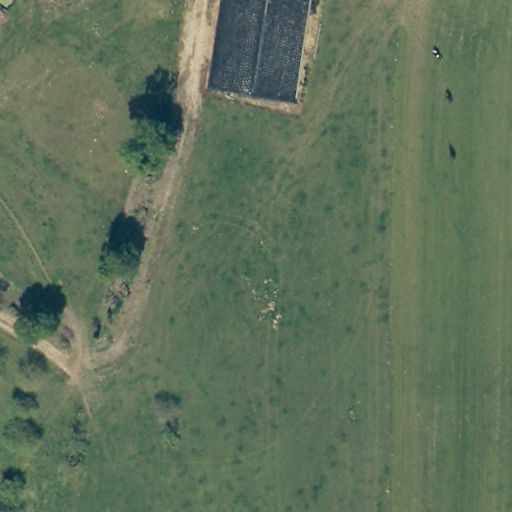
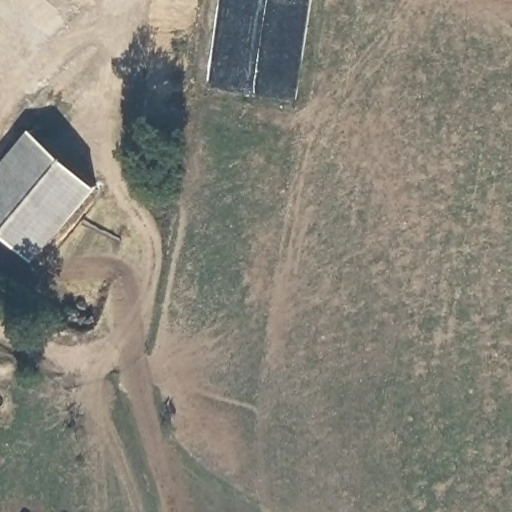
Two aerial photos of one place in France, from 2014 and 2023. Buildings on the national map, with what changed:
new [(97,188),(31,263),(0,235),(0,165),(31,130),(97,188)]

